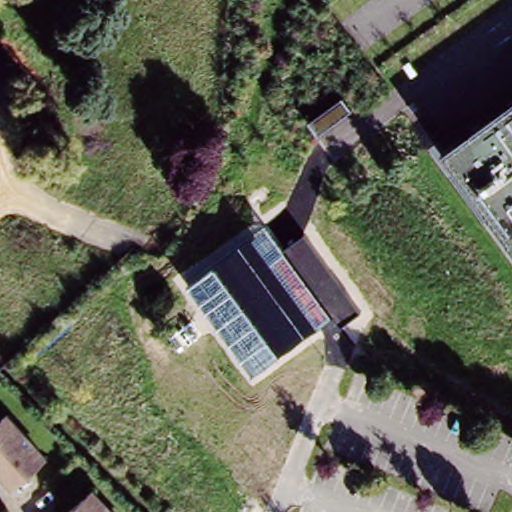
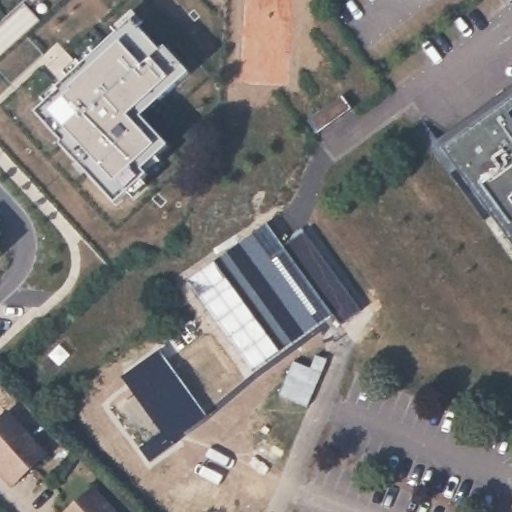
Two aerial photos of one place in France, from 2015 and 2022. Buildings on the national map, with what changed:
new [(160,51),(165,46),(190,72),(140,116),(168,146),(142,170),(146,175),(115,201),(61,143),(64,141),(36,112),(60,91),(56,87),(120,31),(122,32),(133,22),(160,51)]
unchanged [(318,134),(309,122),(342,97),(351,108),(318,134)]
unchanged [(512,237),(452,155),(512,111),(512,237)]
unchanged [(340,325),(332,314),(253,372),(188,280),(268,225),(285,246),(305,232),(360,311),(340,325)]
unchanged [(3,418),(41,461),(9,491),(0,481),(0,421),(3,418)]
unchanged [(84,493),(101,512),(64,512),(84,493)]

